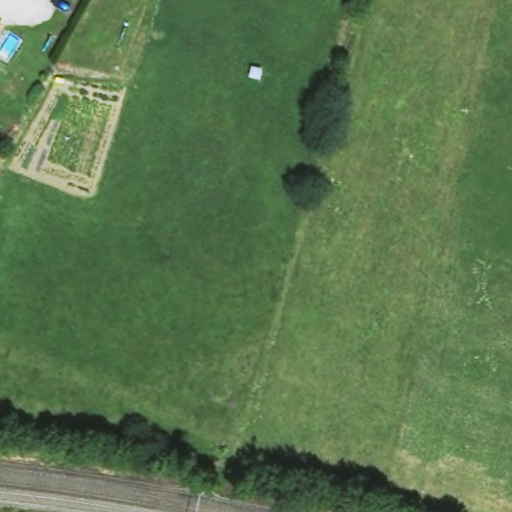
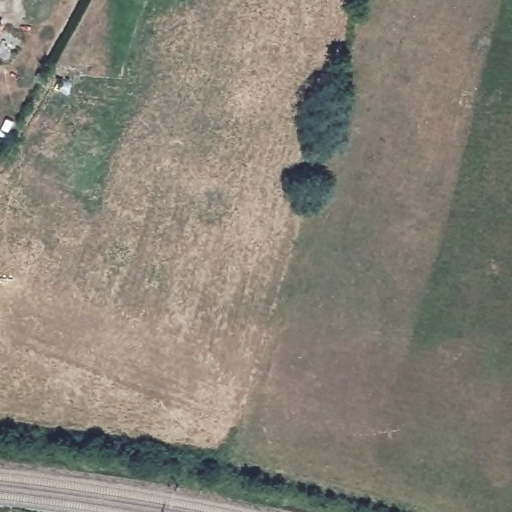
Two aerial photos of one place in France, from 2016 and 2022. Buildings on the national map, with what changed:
unchanged [(2,25),(0,27),(0,23),(2,25)]

